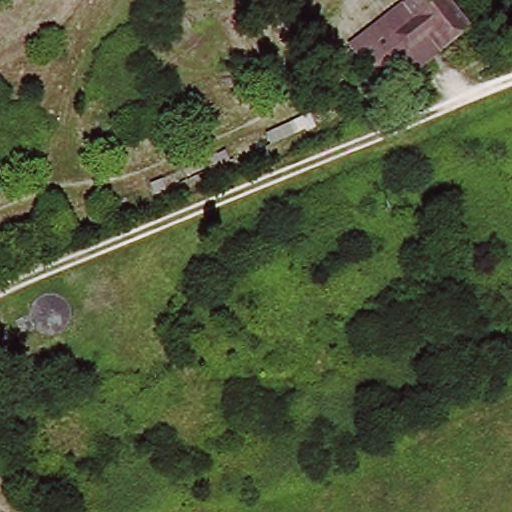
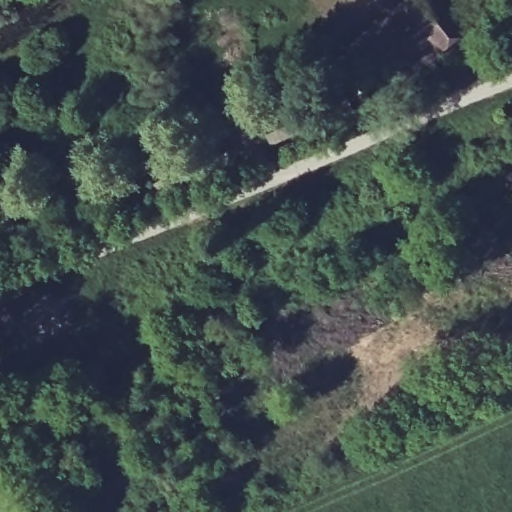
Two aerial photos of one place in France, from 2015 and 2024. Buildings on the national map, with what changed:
unchanged [(412,0),(447,0),(472,33),(440,57),(390,98),(352,48),(403,7),(412,0)]

